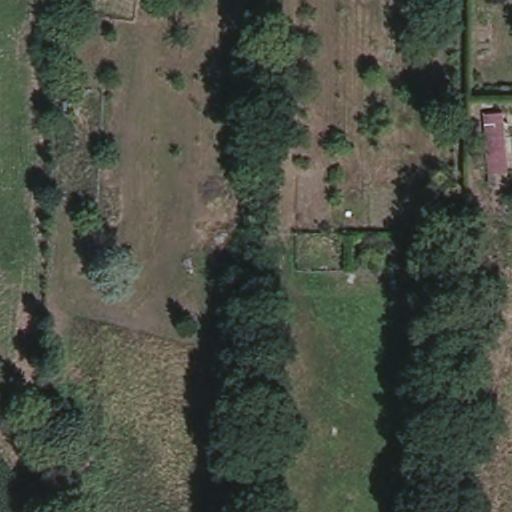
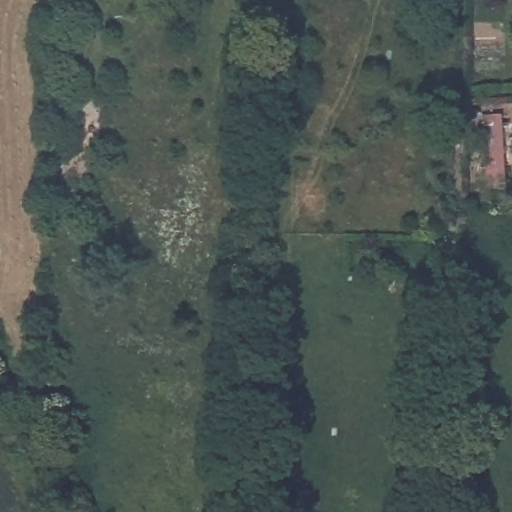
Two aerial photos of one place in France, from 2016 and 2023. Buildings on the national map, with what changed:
unchanged [(506,110),(511,170),(489,171),(485,113),(506,110)]
unchanged [(442,303),(441,412),(419,411),(421,301),(442,303)]

